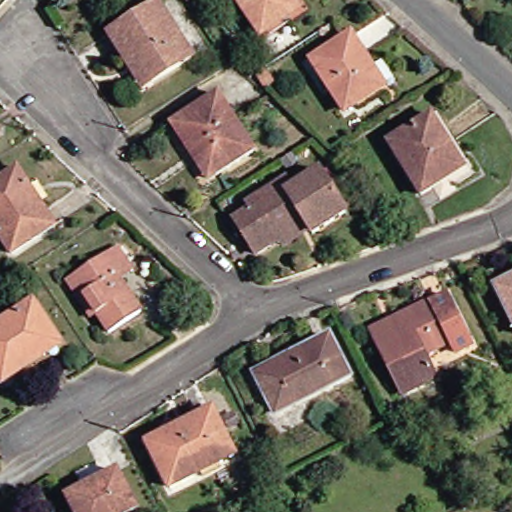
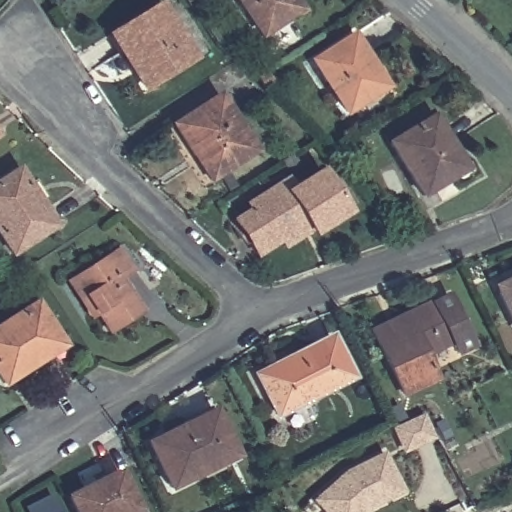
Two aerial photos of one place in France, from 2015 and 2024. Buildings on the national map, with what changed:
unchanged [(294,11),(262,33),(240,0),(286,0),(294,11)]
unchanged [(112,34),(159,3),(194,58),(155,83),(144,90),(120,52),(122,51),(112,34)]
unchanged [(365,70),(377,88),(345,110),(312,60),(340,41),(348,36),(360,54),(369,67),(365,70)]
unchanged [(190,156),(170,126),(215,96),(251,152),(216,176),(206,182),(190,156)]
unchanged [(456,168),(462,163),(467,171),(447,184),(444,180),(436,185),(433,181),(413,193),(380,142),(421,115),(456,168)]
unchanged [(12,251),(0,232),(0,180),(17,169),(54,224),(12,251)]
unchanged [(282,238),(257,254),(245,235),(240,239),(229,222),(250,210),(247,205),(273,189),(289,179),(295,188),(322,171),(347,212),(314,232),(312,228),(286,245),(282,238)]
unchanged [(64,282),(72,277),(113,250),(129,274),(120,280),(141,312),(109,333),(95,313),(87,318),(64,282)]
unchanged [(495,290),(512,281),(512,326),(495,290)]
unchanged [(399,392),(370,329),(386,322),(400,315),(432,300),(432,302),(446,297),(467,343),(453,350),(449,341),(421,354),(432,377),(399,392)]
unchanged [(32,358),(35,363),(4,383),(0,377),(0,327),(35,304),(59,340),(32,358)]
unchanged [(345,376),(274,413),(258,383),(297,363),(295,358),(329,342),(345,376)]
unchanged [(230,455),(166,487),(145,444),(209,411),(230,455)]
new [(392,428),(425,413),(436,439),(403,454),(392,428)]
new [(369,512),(325,512),(315,499),(348,470),(386,451),(406,492),(372,510),(369,512)]
unchanged [(137,510),(132,512),(78,512),(71,497),(119,473),(137,510)]

